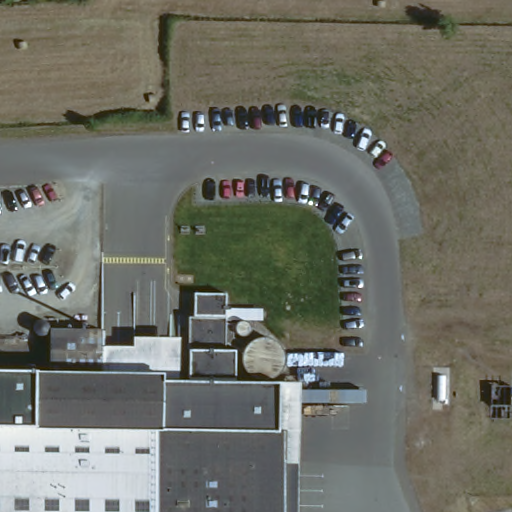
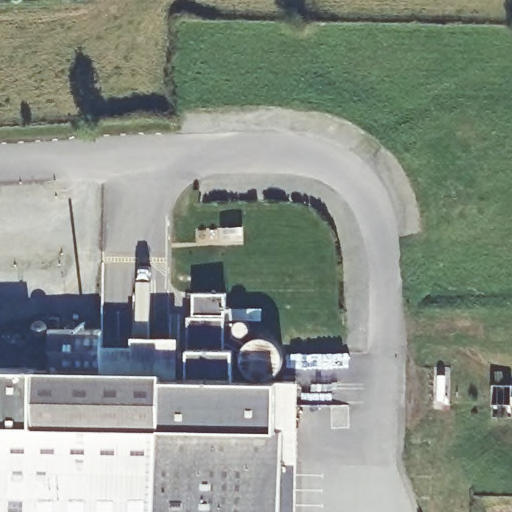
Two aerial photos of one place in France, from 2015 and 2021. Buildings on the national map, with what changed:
unchanged [(47,374),(50,323),(107,323),(106,336),(134,337),(134,329),(189,331),(191,285),(227,286),(225,344),(240,344),(247,337),(260,330),(267,329),(276,333),(284,341),(286,348),(286,370),(286,385),(287,512),(0,512),(0,373),(39,374),(47,374)]

